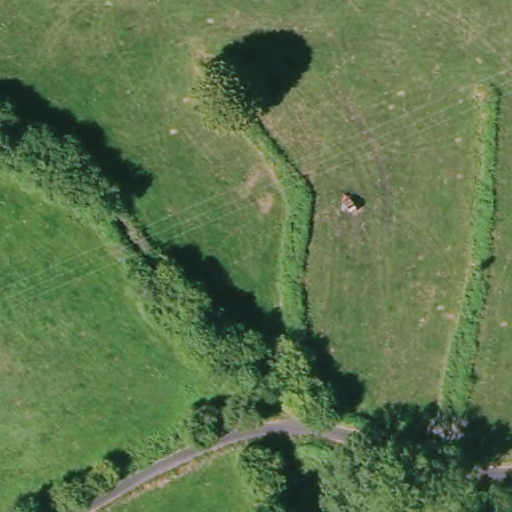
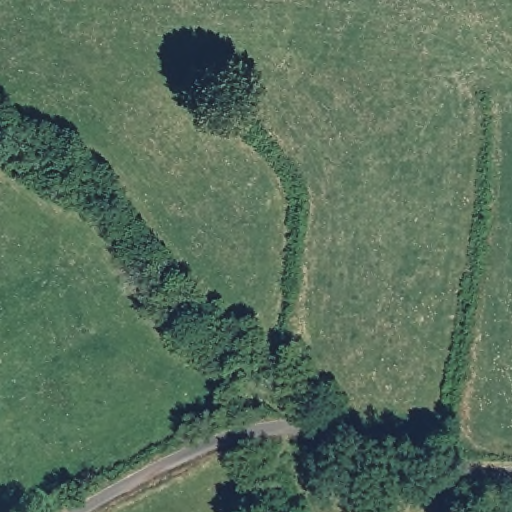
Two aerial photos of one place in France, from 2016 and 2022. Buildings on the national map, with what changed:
unchanged [(6,508),(12,512),(3,512),(6,508)]

